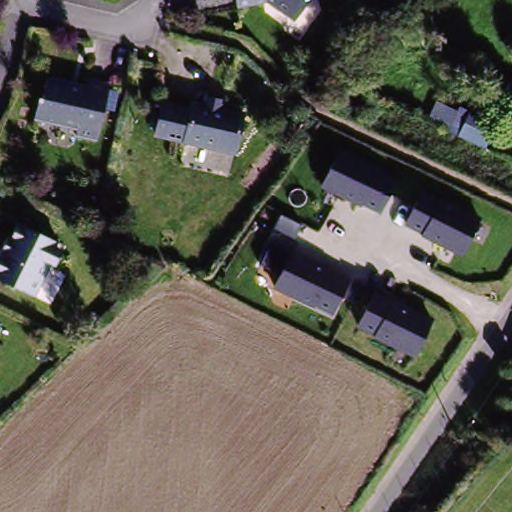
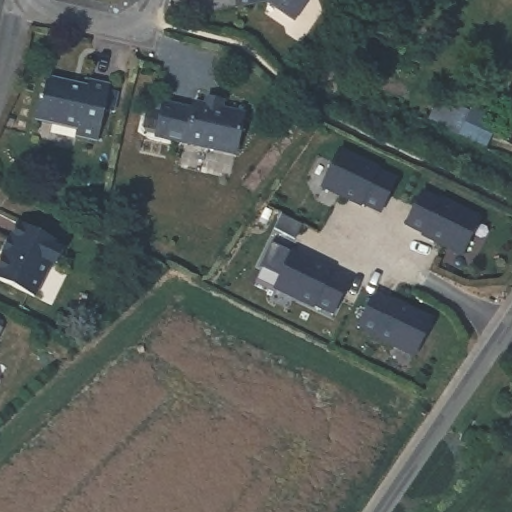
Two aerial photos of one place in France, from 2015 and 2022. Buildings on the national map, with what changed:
unchanged [(236,1),(236,0),(242,0),(236,1)]
unchanged [(293,15),(271,0),(303,0),(293,15)]
unchanged [(42,93),(44,94),(48,76),(53,73),(76,78),(75,80),(80,81),(90,80),(91,76),(113,81),(100,135),(80,131),(82,125),(37,114),(42,93)]
unchanged [(512,90),(512,96),(509,95),(512,90)]
unchanged [(229,153),(151,135),(158,103),(186,109),(187,102),(199,105),(202,97),(216,100),(214,109),(238,114),(229,153)]
unchanged [(461,111),(471,116),(473,113),(498,125),(487,151),(470,143),(449,134),(461,111)]
unchanged [(346,152),(384,171),(401,180),(384,209),(368,200),(329,184),(346,152)]
unchanged [(429,190),(449,200),(486,218),(469,255),(433,237),(413,225),(429,190)]
unchanged [(0,252),(17,221),(57,242),(53,250),(59,253),(53,263),(47,259),(28,294),(0,278),(0,252)]
unchanged [(295,250),(338,268),(357,279),(343,312),(319,303),(279,282),(295,250)]
unchanged [(382,293),(399,301),(437,321),(422,356),(386,340),(365,327),(382,293)]

